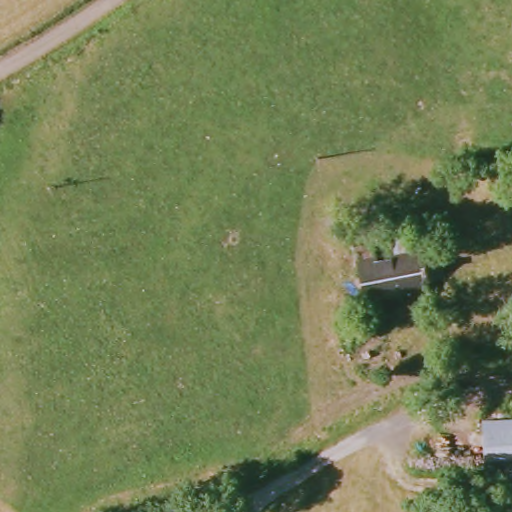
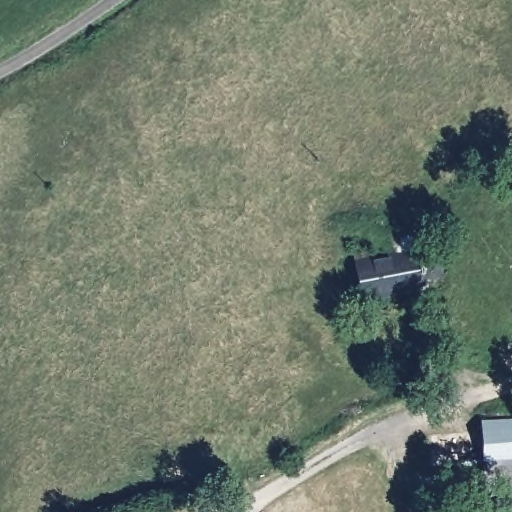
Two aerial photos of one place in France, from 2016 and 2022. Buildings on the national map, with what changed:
unchanged [(416,238),(419,250),(437,247),(444,275),(425,280),(426,285),(363,298),(353,252),(368,249),(371,260),(384,256),(384,245),(416,238)]
unchanged [(357,317),(366,330),(353,338),(344,325),(343,323),(356,315),(357,317)]
unchanged [(484,463),(483,463),(479,423),(481,423),(512,421),(512,462),(484,463)]
unchanged [(512,467),(512,493),(486,495),(484,468),(512,467)]

